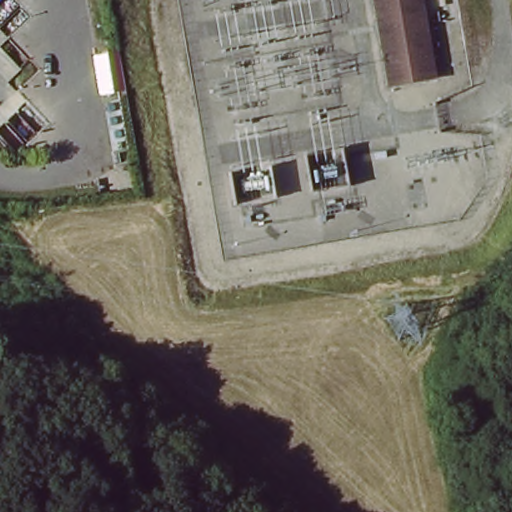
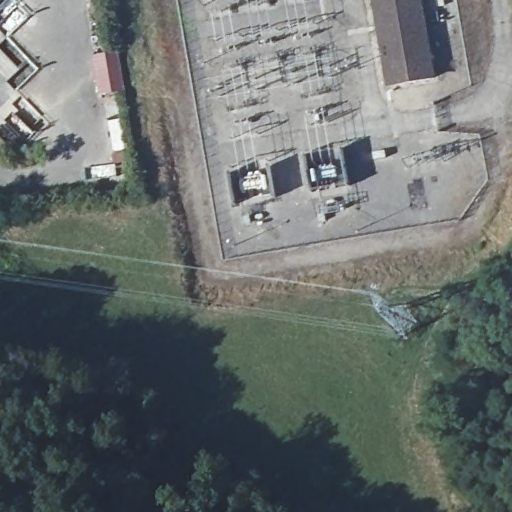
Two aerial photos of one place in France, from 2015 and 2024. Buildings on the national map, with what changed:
unchanged [(434,77),(390,84),(375,0),(421,0),(434,77)]

